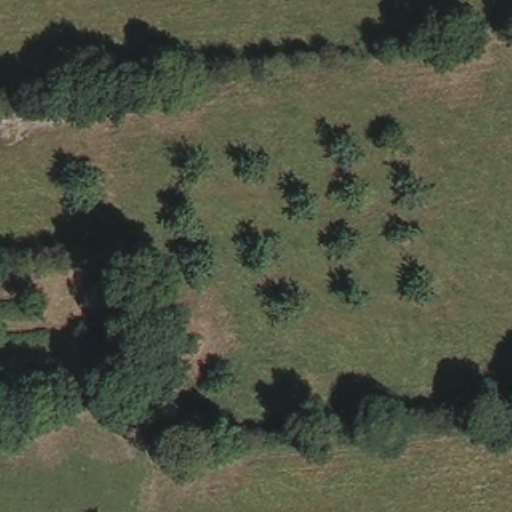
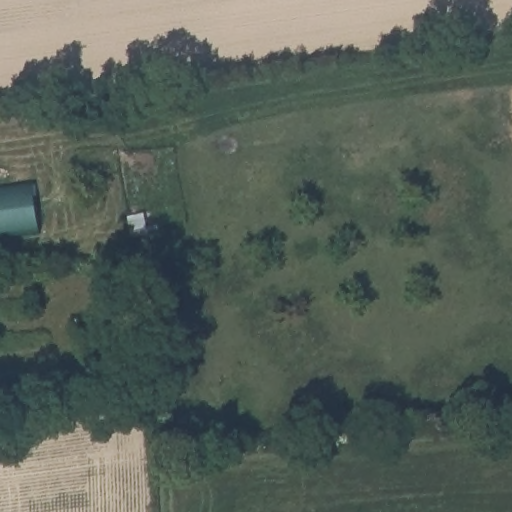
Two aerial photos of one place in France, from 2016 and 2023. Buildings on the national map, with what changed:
new [(39,230),(28,230),(0,235),(0,192),(33,186),(38,219),(39,230)]

